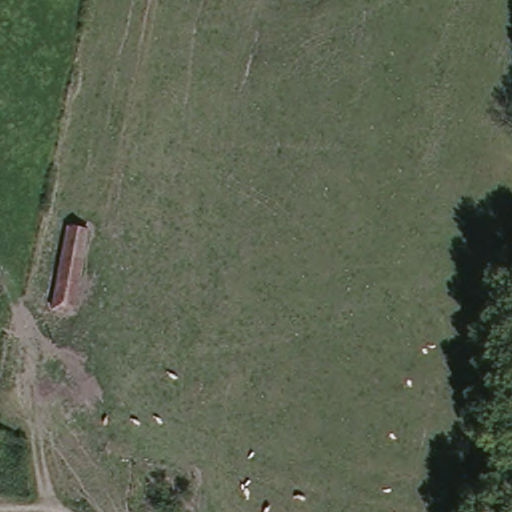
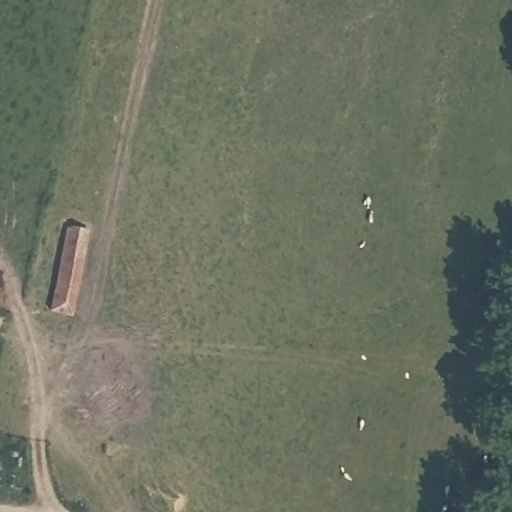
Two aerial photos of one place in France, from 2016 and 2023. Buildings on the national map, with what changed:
unchanged [(68,219),(97,225),(88,266),(60,261),(68,219)]
unchanged [(88,266),(77,314),(50,308),(60,261),(88,266)]

